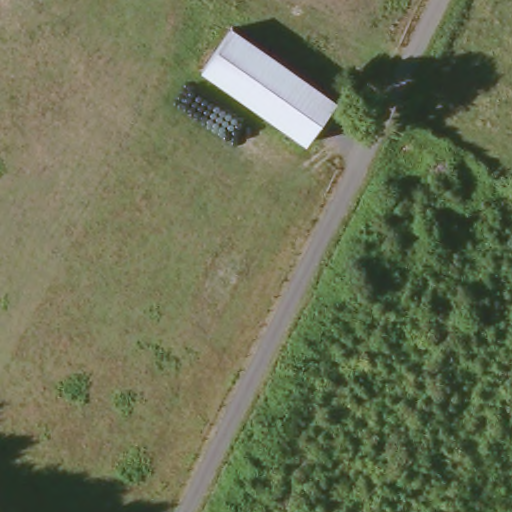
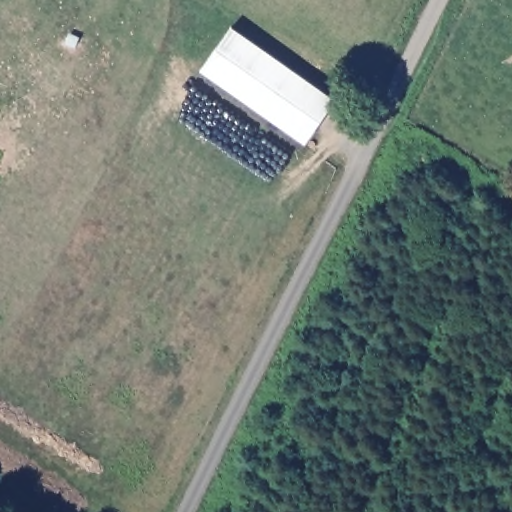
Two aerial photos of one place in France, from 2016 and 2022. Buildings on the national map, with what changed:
unchanged [(329,101),(300,139),(198,69),(229,29),(329,101)]

